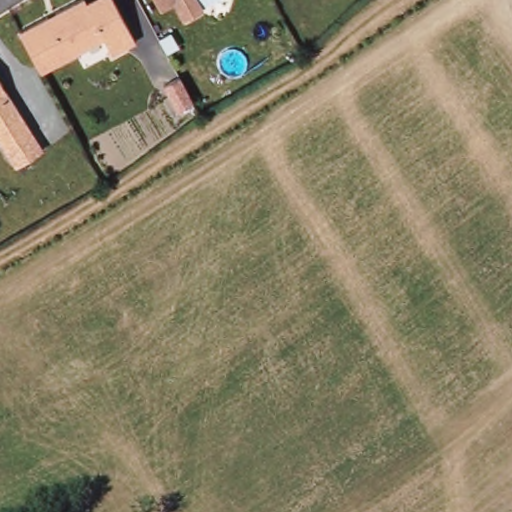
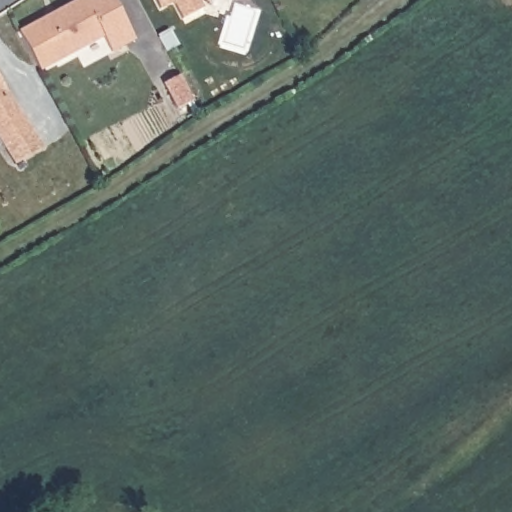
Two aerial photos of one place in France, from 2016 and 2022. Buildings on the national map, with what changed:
unchanged [(57,10),(76,0),(117,0),(137,38),(114,50),(106,35),(43,67),(23,27),(51,12),(57,10)]
unchanged [(205,4),(184,15),(178,2),(164,9),(160,0),(203,0),(205,4)]
unchanged [(6,147),(0,137),(0,76),(33,131),(6,147)]
unchanged [(171,89),(186,81),(200,106),(185,114),(171,89)]

